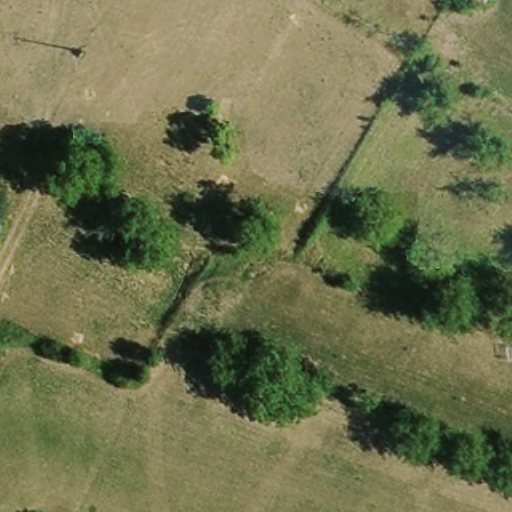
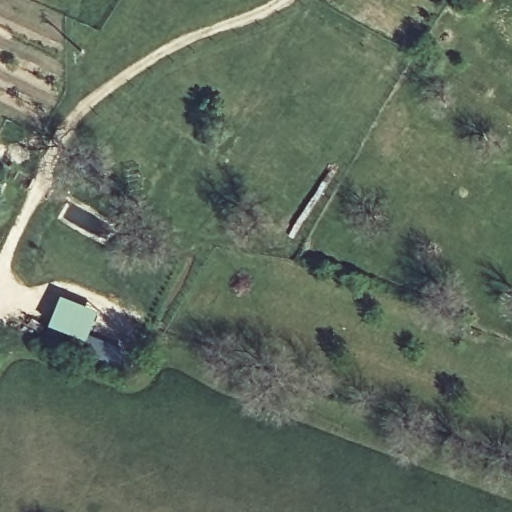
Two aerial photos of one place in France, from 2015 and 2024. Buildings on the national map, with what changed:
new [(98,310),(86,340),(51,325),(62,296),(98,310)]

